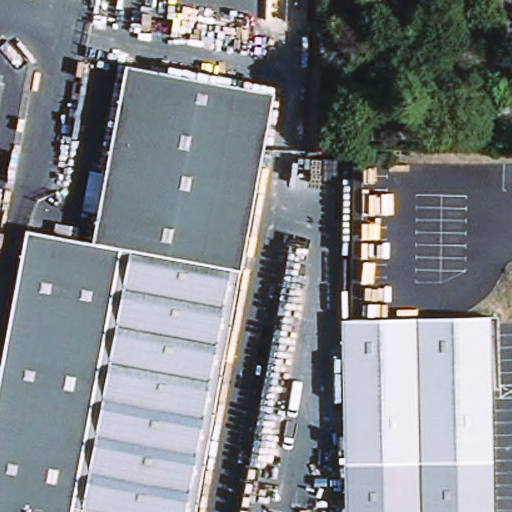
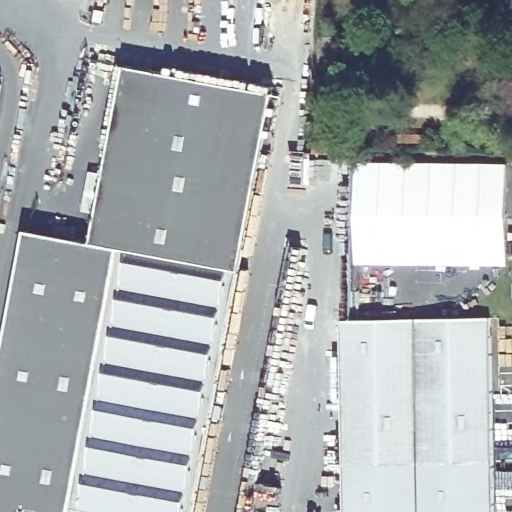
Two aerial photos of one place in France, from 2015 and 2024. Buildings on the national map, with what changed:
unchanged [(320,69),(317,69),(299,69),(300,37),(319,37),(321,37),(320,69)]
unchanged [(96,244),(130,65),(278,92),(199,512),(0,512),(0,394),(30,232),(96,244)]
unchanged [(0,101),(0,84),(3,85),(0,101)]
new [(356,159),(509,162),(509,266),(354,266),(353,219),(356,159)]
unchanged [(319,241),(297,242),(294,217),(318,216),(319,241)]
unchanged [(511,318),(508,456),(494,456),(494,512),(345,512),(344,447),(342,320),(511,318)]

